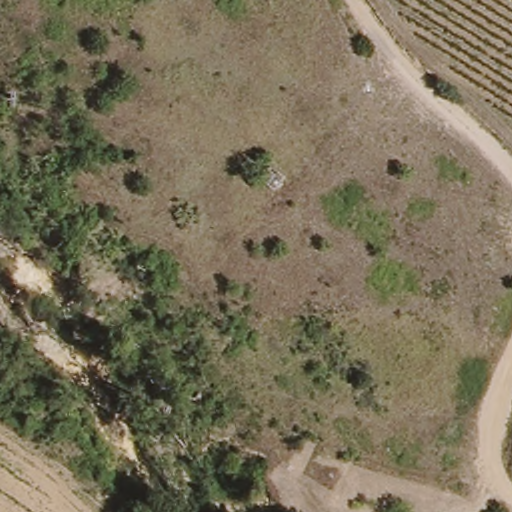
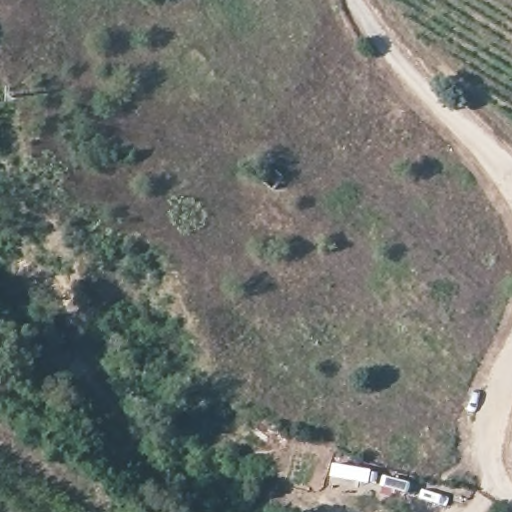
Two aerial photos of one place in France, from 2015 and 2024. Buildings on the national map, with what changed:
unchanged [(254,190),(267,171),(281,181),(268,199),(254,190)]

